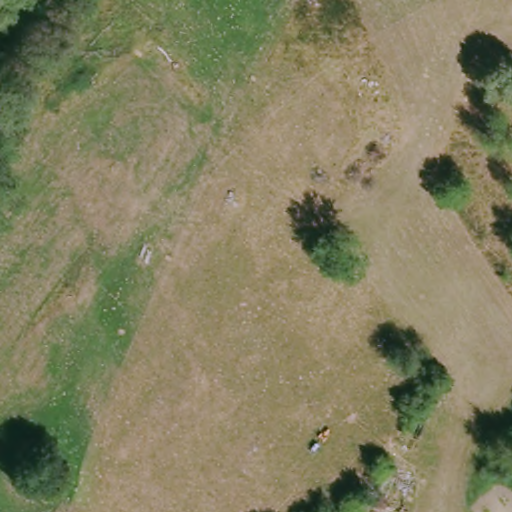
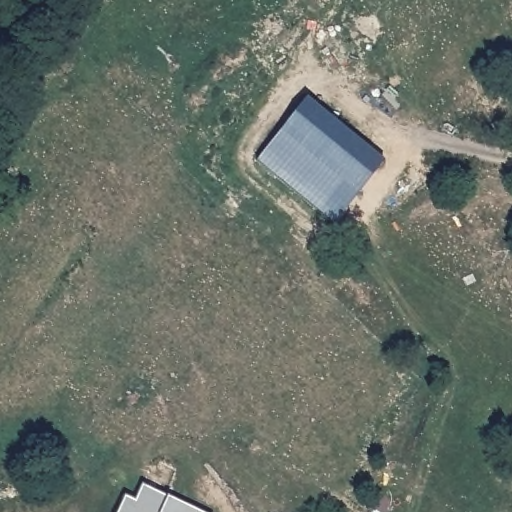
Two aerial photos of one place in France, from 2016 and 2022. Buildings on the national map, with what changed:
new [(252,161),(302,99),(381,161),(331,225),(252,161)]
new [(130,504),(136,488),(194,512),(114,512),(119,500),(130,504)]

